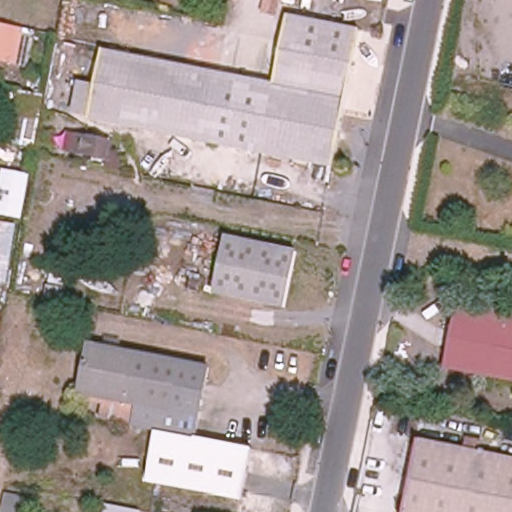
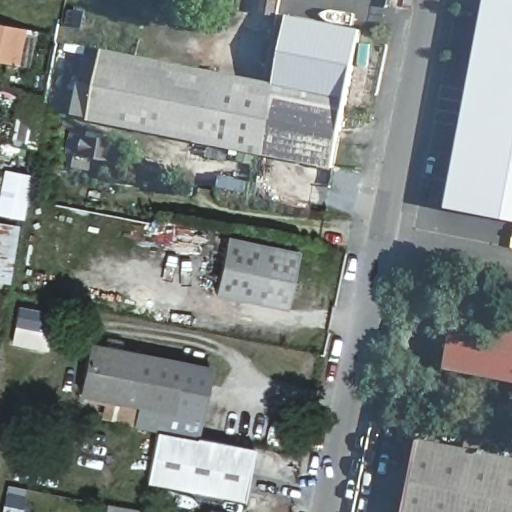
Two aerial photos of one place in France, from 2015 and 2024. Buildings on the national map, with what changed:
new [(486,0),(512,0),(512,222),(447,209),(486,0)]
unchanged [(334,168),(89,120),(103,48),(274,82),(288,14),(361,28),(334,168)]
unchanged [(0,61),(0,23),(25,29),(18,65),(0,61)]
unchanged [(34,148),(9,143),(20,90),(45,95),(34,148)]
unchanged [(108,135),(106,147),(124,150),(120,170),(104,168),(104,155),(38,145),(40,128),(108,135)]
unchanged [(0,217),(0,187),(4,168),(32,174),(24,220),(0,217)]
unchanged [(0,282),(0,222),(16,224),(8,283),(0,282)]
unchanged [(284,311),(217,297),(227,242),(295,257),(284,311)]
unchanged [(446,368),(457,309),(481,314),(482,305),(512,312),(512,381),(446,368)]
unchanged [(104,397),(80,392),(90,343),(209,367),(195,436),(158,429),(134,425),(99,418),(104,397)]
unchanged [(195,436),(254,448),(244,499),(149,480),(158,429),(195,436)]
unchanged [(405,506),(419,439),(512,458),(512,512),(404,512),(405,506)]

